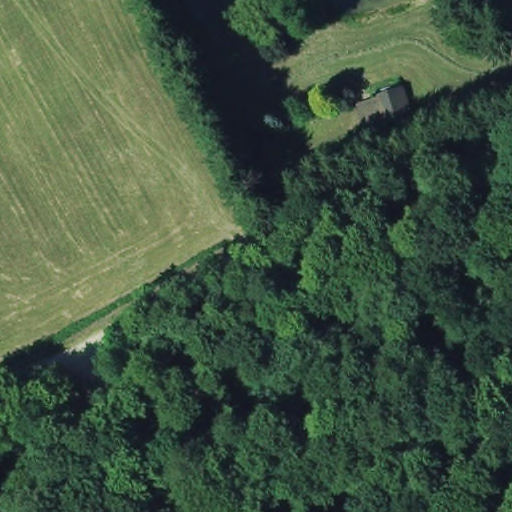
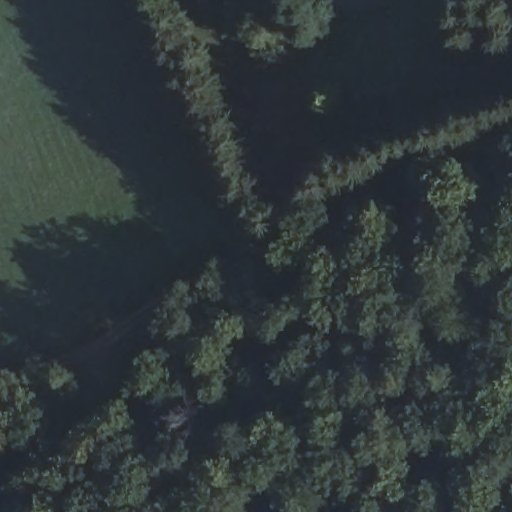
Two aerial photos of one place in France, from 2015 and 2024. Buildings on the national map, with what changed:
unchanged [(358,118),(325,138),(302,102),(335,84),(358,118)]
unchanged [(373,101),(398,93),(406,117),(381,126),(373,101)]

